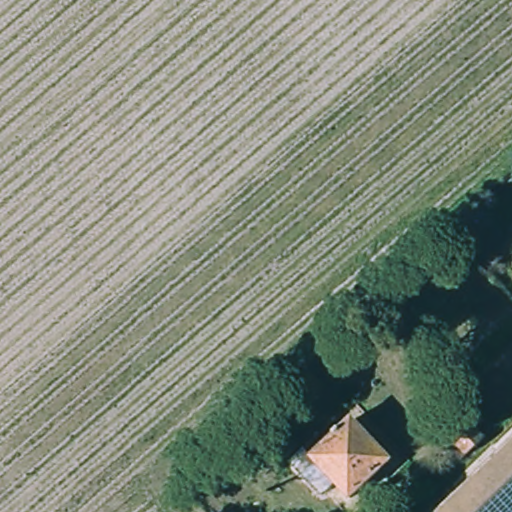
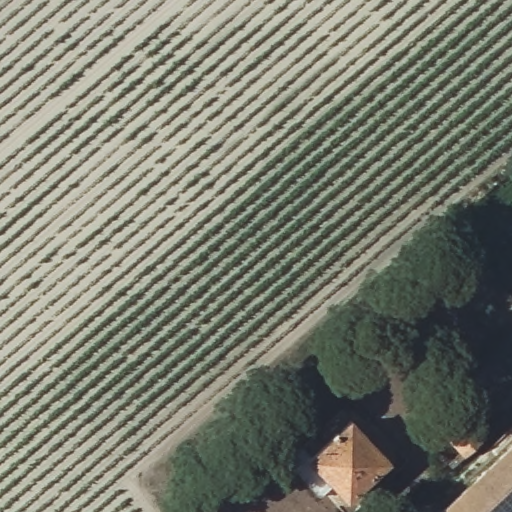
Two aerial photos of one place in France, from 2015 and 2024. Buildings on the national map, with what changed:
unchanged [(356,420),(394,462),(353,500),(311,458),(356,420)]
unchanged [(512,446),(512,512),(441,512),(512,446)]

